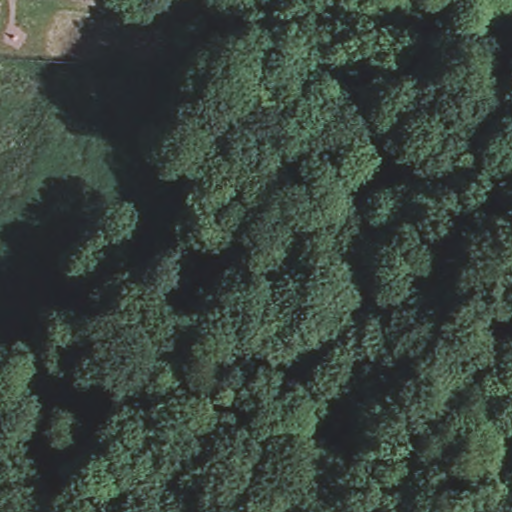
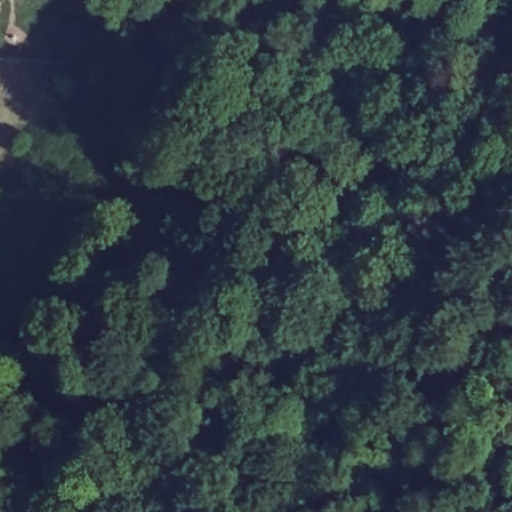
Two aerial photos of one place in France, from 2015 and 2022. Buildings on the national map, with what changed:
unchanged [(66,267),(37,312),(15,296),(45,256),(66,267)]

